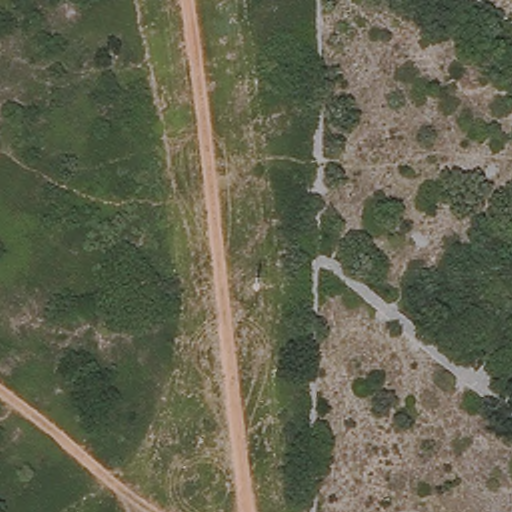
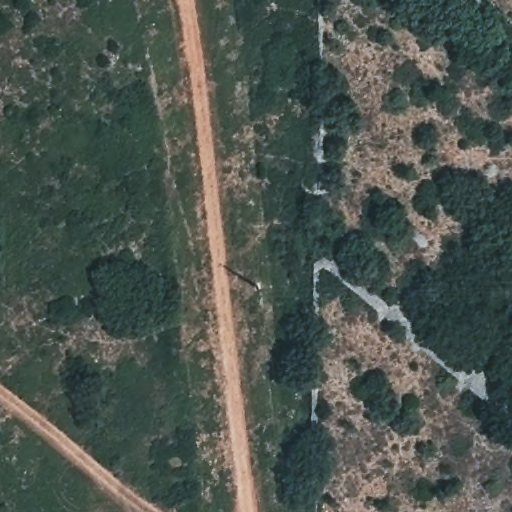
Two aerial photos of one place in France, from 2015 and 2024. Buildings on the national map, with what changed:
[]

